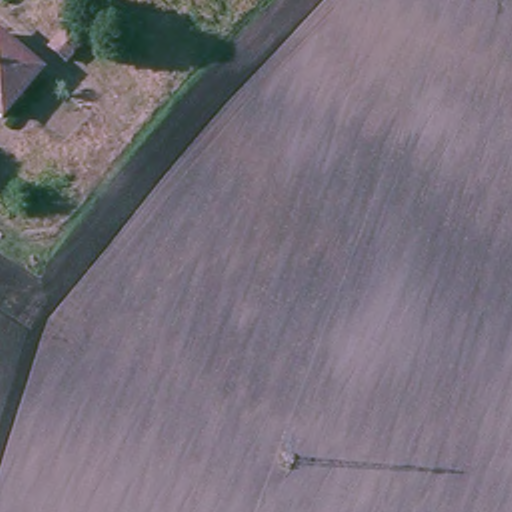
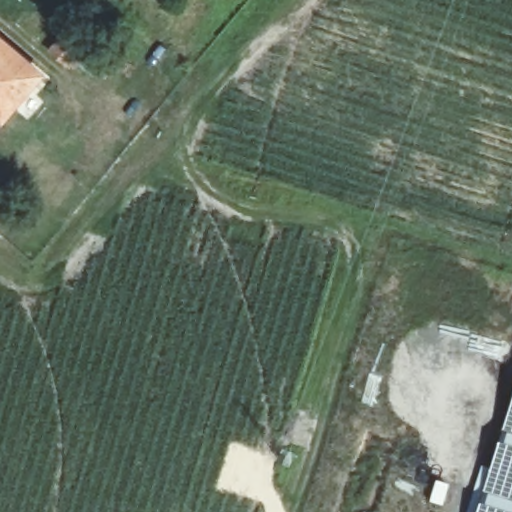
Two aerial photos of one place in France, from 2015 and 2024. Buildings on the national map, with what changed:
unchanged [(54,54),(34,41),(50,17),(70,30),(54,54)]
unchanged [(0,119),(0,39),(40,72),(0,119)]
new [(512,512),(476,512),(512,397),(512,512)]

